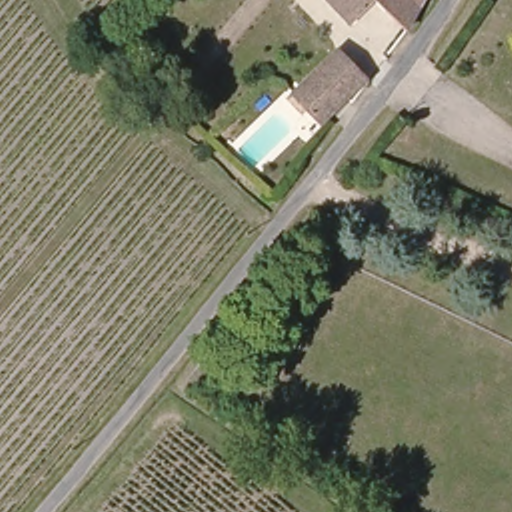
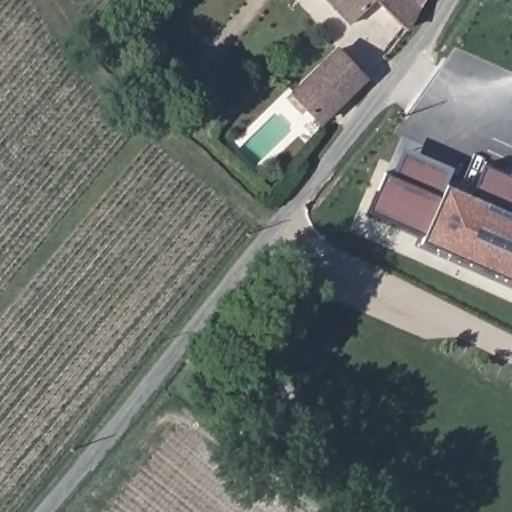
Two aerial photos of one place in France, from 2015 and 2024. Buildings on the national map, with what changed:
unchanged [(351,21),(332,0),(373,0),(351,21)]
unchanged [(415,14),(406,27),(376,0),(422,0),(415,14)]
unchanged [(291,100),(336,53),(364,80),(323,122),(310,109),(305,114),(291,100)]
new [(423,235),(368,211),(385,173),(393,176),(406,147),(449,166),(446,172),(446,187),(460,189),(475,156),(484,160),(482,165),(512,178),(512,280),(425,240),(423,235)]

